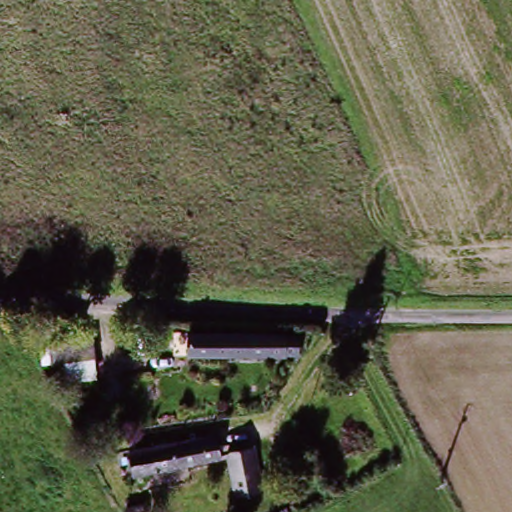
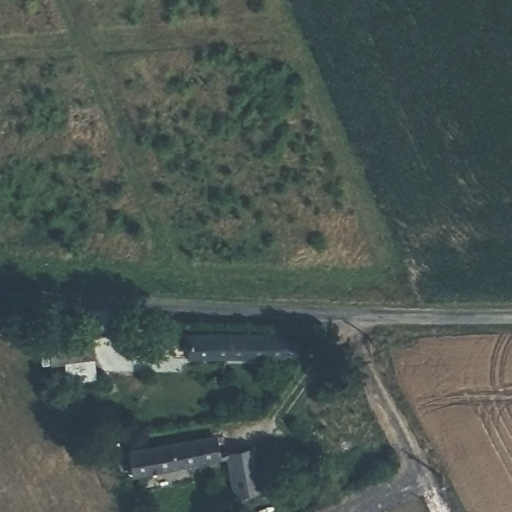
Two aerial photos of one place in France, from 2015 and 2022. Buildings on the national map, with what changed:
unchanged [(266,339),(279,338),(280,358),(267,358),(267,361),(256,361),(172,359),(173,334),(257,336),(266,336),(266,339)]
unchanged [(48,344),(90,340),(93,360),(50,364),(48,344)]
unchanged [(219,433),(224,455),(144,471),(141,472),(136,450),(219,433)]
unchanged [(230,451),(258,446),(266,487),(239,492),(230,451)]

